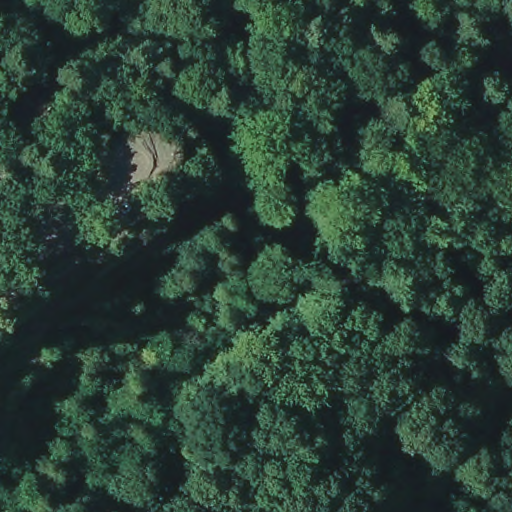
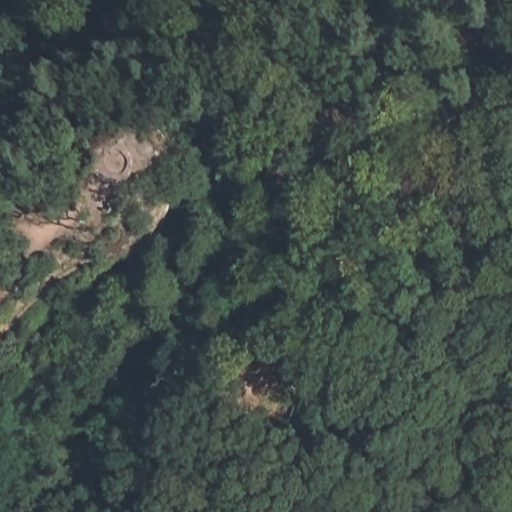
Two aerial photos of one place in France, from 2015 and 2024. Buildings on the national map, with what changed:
[]

